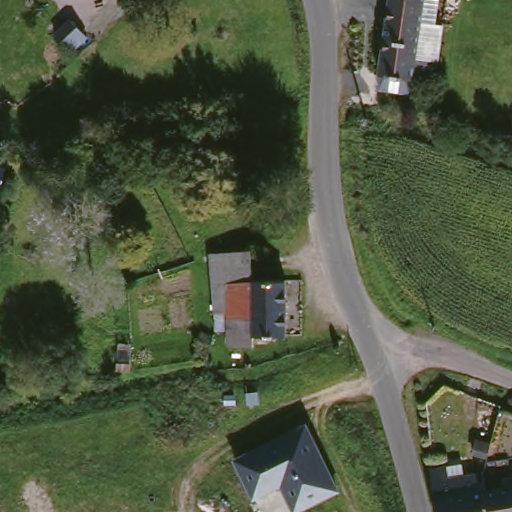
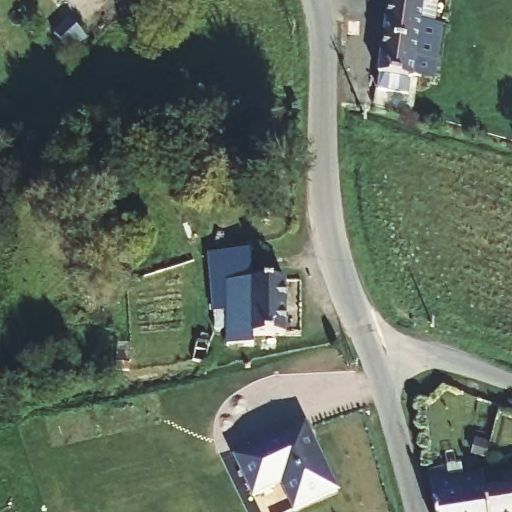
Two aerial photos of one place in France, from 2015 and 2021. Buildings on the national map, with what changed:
unchanged [(418,80),(386,77),(397,0),(430,0),(428,22),(448,26),(440,79),(420,75),(418,80)]
unchanged [(60,10),(75,25),(60,39),(45,24),(60,10)]
unchanged [(247,339),(247,350),(220,350),(220,334),(209,334),(209,321),(213,321),(213,316),(206,316),(202,259),(202,257),(244,254),(246,283),(278,283),(279,339),(247,339)]
unchanged [(330,480),(287,500),(272,470),(265,472),(267,477),(246,487),(228,448),(298,415),(330,480)]
unchanged [(480,441),(492,444),(487,460),(476,456),(480,441)]
unchanged [(489,512),(436,512),(432,472),(432,471),(448,466),(450,477),(485,473),(487,492),(489,512)]
unchanged [(504,481),(512,480),(512,512),(489,512),(487,492),(505,490),(504,481)]

